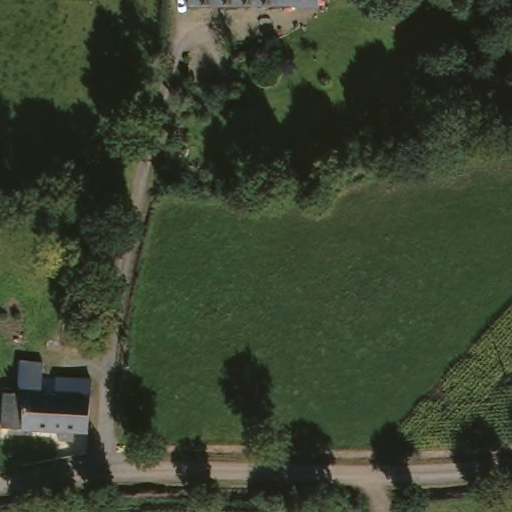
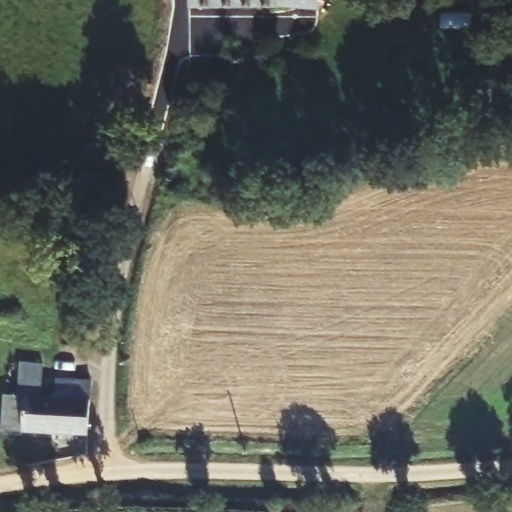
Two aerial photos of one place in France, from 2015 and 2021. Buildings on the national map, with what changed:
unchanged [(293,7),(278,6),(190,9),(191,0),(294,0),(293,7)]
unchanged [(52,398),(53,381),(87,383),(86,400),(85,435),(17,432),(0,431),(0,404),(0,395),(13,396),(15,362),(40,364),(37,397),(44,398),(52,398)]

